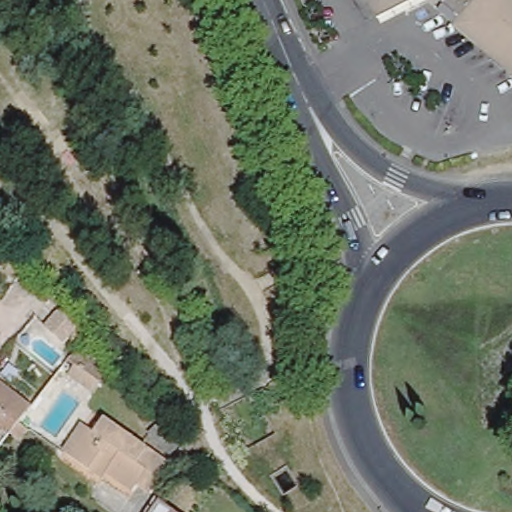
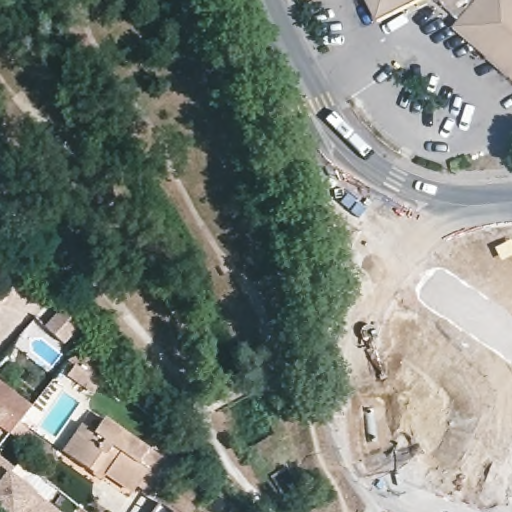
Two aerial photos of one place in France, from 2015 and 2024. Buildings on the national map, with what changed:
unchanged [(377,19),(368,0),(416,0),(377,19)]
unchanged [(461,20),(442,5),(440,0),(512,0),(512,64),(461,20)]
unchanged [(455,27),(461,20),(512,64),(512,77),(455,27)]
unchanged [(107,375),(93,396),(77,386),(86,373),(69,359),(79,347),(107,375)]
unchanged [(0,440),(0,370),(37,397),(25,413),(34,421),(25,433),(15,425),(2,441),(0,440)]
unchanged [(83,431),(95,438),(105,425),(170,470),(170,472),(151,500),(137,491),(133,497),(99,474),(95,480),(64,459),(83,431)]
unchanged [(160,429),(181,450),(172,461),(150,441),(160,429)]
new [(11,474),(57,512),(5,512),(0,508),(0,457),(15,469),(11,474)]
unchanged [(154,512),(161,502),(178,512),(154,512)]

